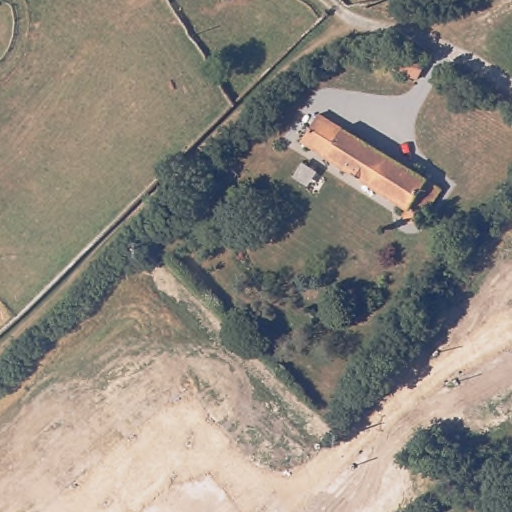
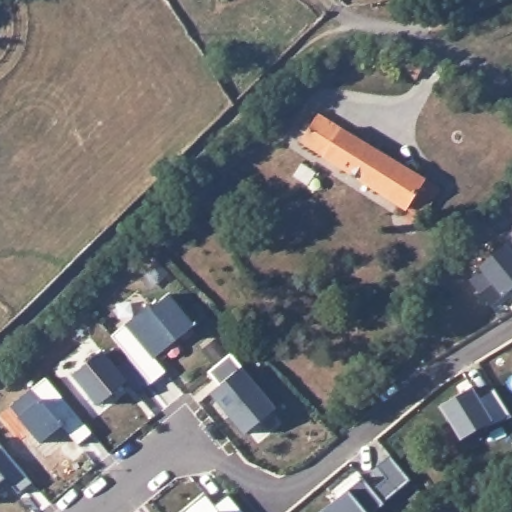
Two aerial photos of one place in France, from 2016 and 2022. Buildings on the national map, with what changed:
unchanged [(408,55),(425,64),(416,80),(400,71),(408,55)]
unchanged [(322,114),(446,187),(429,215),(426,214),(422,217),(417,219),(412,218),(411,215),(413,206),(305,141),(322,114)]
new [(479,267),(507,245),(512,251),(512,290),(491,307),(470,281),(482,271),(479,267)]
new [(149,305),(152,308),(169,294),(195,325),(155,358),(166,372),(152,384),(112,337),(149,305)]
unchanged [(99,403),(73,373),(102,350),(127,380),(99,403)]
new [(231,355),(276,409),(245,435),(211,394),(220,386),(209,373),(231,355)]
new [(46,378),(93,433),(80,445),(64,426),(42,444),(11,407),(46,378)]
new [(480,398),(495,388),(512,417),(512,418),(484,435),(482,432),(461,440),(441,407),(473,387),(480,398)]
new [(34,482),(20,493),(7,478),(0,484),(0,443),(34,482)]
new [(373,490),(386,478),(376,466),(390,455),(411,480),(384,503),(385,504),(375,512),(321,512),(363,477),(373,490)]
new [(216,505),(229,494),(244,512),(184,512),(206,494),(216,505)]

